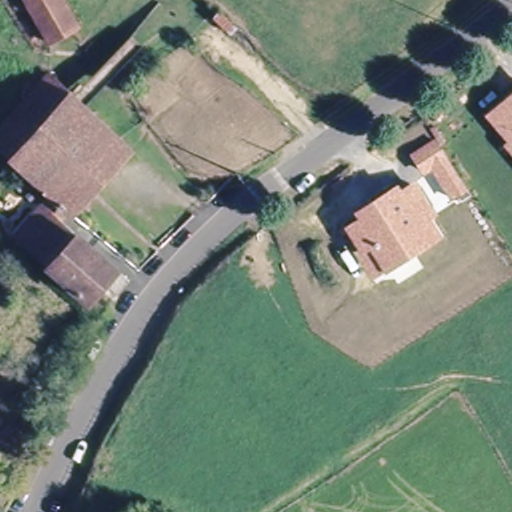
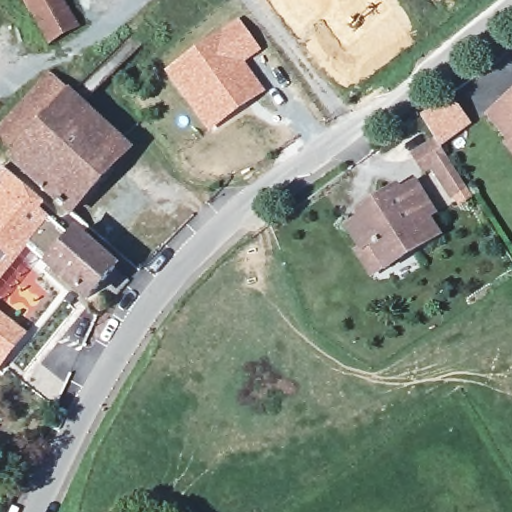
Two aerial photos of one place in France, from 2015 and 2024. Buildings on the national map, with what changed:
unchanged [(24,0),(64,0),(79,26),(48,44),(24,0)]
new [(239,17),(262,50),(246,62),(266,91),(209,132),(166,73),(239,17)]
unchanged [(130,148),(68,212),(61,220),(44,204),(50,196),(9,160),(0,151),(0,152),(0,129),(12,115),(50,74),(130,148)]
new [(420,115),(450,93),(472,125),(440,149),(435,140),(420,115)]
unchanged [(512,93),(512,135),(491,111),(512,93)]
unchanged [(512,139),(512,142),(511,140),(512,139)]
unchanged [(423,176),(411,155),(435,140),(466,191),(451,200),(431,171),(423,176)]
new [(4,184),(0,182),(0,169),(3,166),(44,204),(45,205),(42,208),(40,205),(15,236),(27,247),(0,282),(0,188),(4,184)]
unchanged [(345,226),(357,219),(353,212),(398,184),(400,189),(416,180),(437,215),(431,220),(442,236),(385,272),(371,280),(354,252),(358,249),(345,226)]
unchanged [(40,205),(75,237),(77,235),(115,268),(87,300),(15,236),(40,205)]
new [(27,333),(0,372),(0,313),(27,333)]

